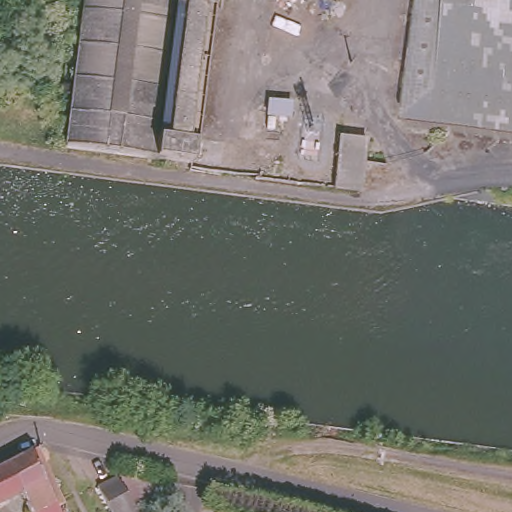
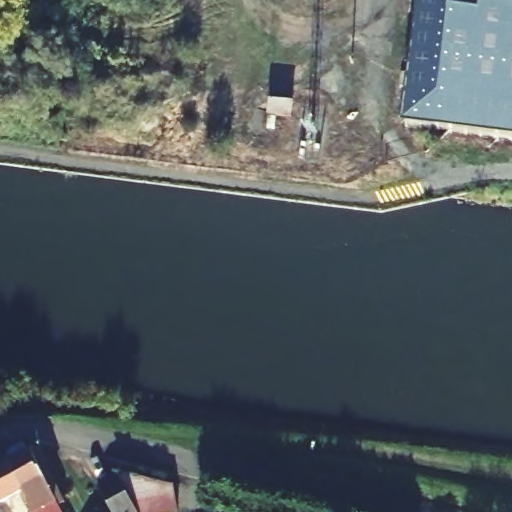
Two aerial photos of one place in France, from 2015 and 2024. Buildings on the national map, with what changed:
demolished [(69,27),(60,26),(61,0),(79,0),(78,26),(69,27)]
demolished [(201,0),(187,158),(63,151),(69,27),(78,26),(79,0),(201,0)]
unchanged [(412,0),(512,0),(512,142),(479,137),(392,126),(412,0)]
unchanged [(266,122),(269,94),(295,96),(294,109),(300,109),(298,127),(266,122)]
demolished [(338,150),(340,133),(366,137),(365,157),(360,189),(333,185),(338,150)]
unchanged [(25,497),(6,462),(30,450),(60,507),(62,512),(33,512),(25,497)]
unchanged [(0,466),(6,462),(25,497),(0,510),(0,466)]
unchanged [(171,509),(142,502),(127,471),(178,484),(171,509)]
unchanged [(141,512),(117,512),(101,481),(119,472),(141,512)]

